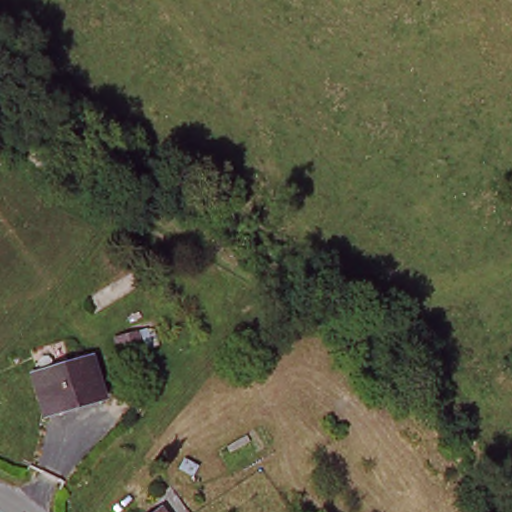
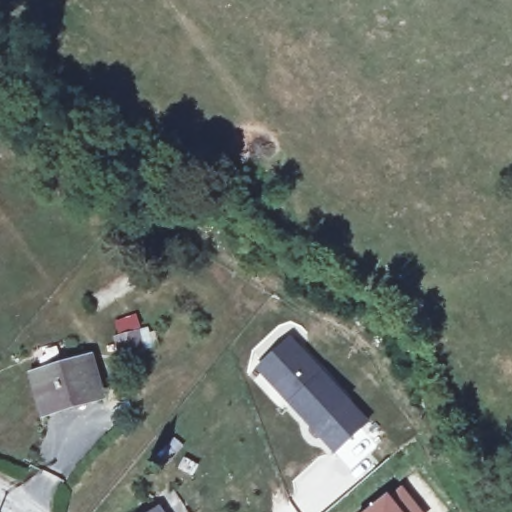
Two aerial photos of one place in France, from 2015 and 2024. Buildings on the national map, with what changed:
new [(335,454),(317,433),(288,403),(255,368),(290,335),(323,371),(350,400),(370,422),(335,454)]
unchanged [(91,395),(44,411),(33,376),(77,361),(91,395)]
new [(390,495),(402,485),(424,512),(364,512),(389,493),(390,495)]
unchanged [(150,512),(160,504),(165,512),(150,512)]

